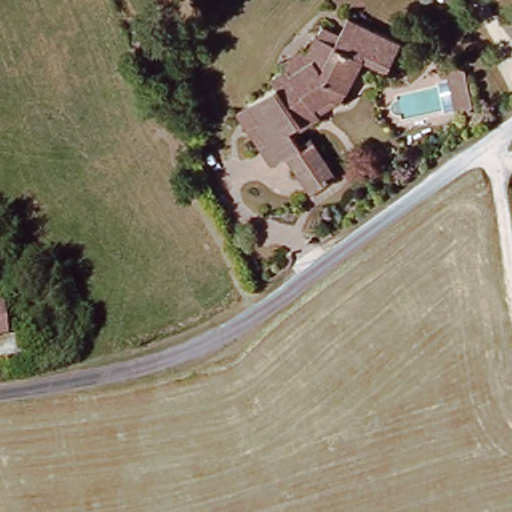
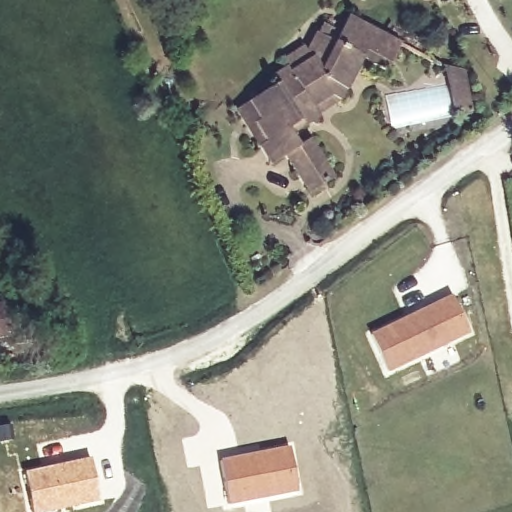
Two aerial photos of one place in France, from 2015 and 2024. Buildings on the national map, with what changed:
unchanged [(397,44),(382,73),(359,63),(338,106),(327,99),(315,106),(322,118),(297,136),(305,147),(313,141),(340,178),(315,195),(289,160),(277,169),(264,151),(267,146),(257,131),(262,125),(251,108),(275,91),(270,83),(287,71),(290,76),(311,63),(305,55),(315,35),(332,40),(342,21),(352,25),(397,44)]
unchanged [(467,113),(453,114),(447,71),(460,69),(467,113)]
new [(452,293),(470,332),(388,370),(370,332),(452,293)]
unchanged [(0,339),(0,305),(5,305),(7,339),(0,339)]
new [(289,445),(298,490),(228,505),(219,459),(289,445)]
new [(90,457),(97,500),(40,512),(32,512),(24,470),(90,457)]

